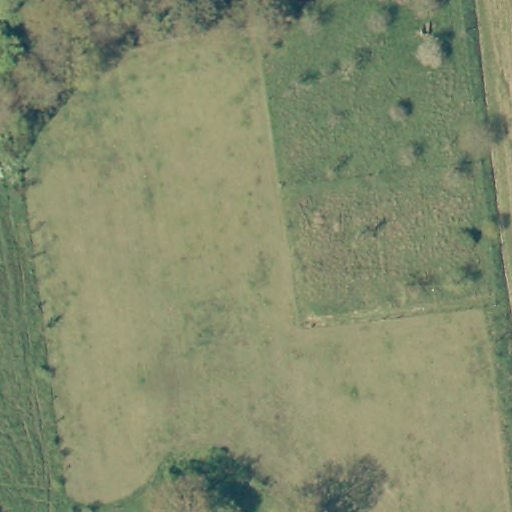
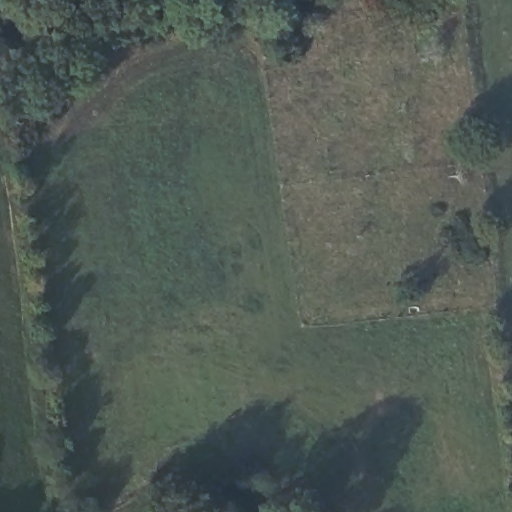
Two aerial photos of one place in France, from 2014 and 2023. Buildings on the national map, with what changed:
[]

